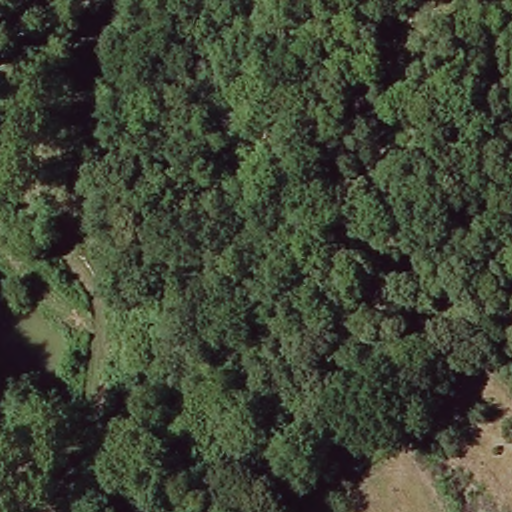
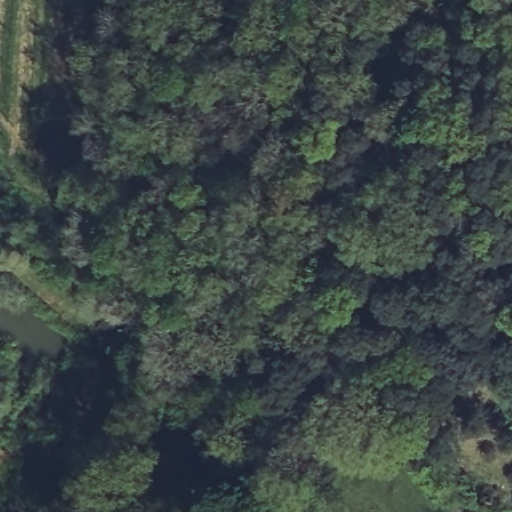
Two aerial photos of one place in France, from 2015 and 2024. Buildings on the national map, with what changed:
[]

